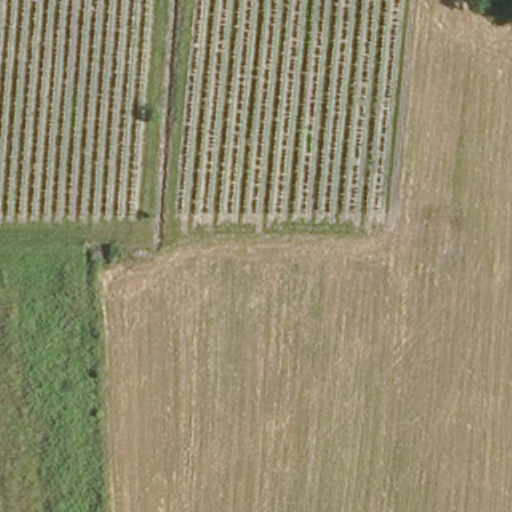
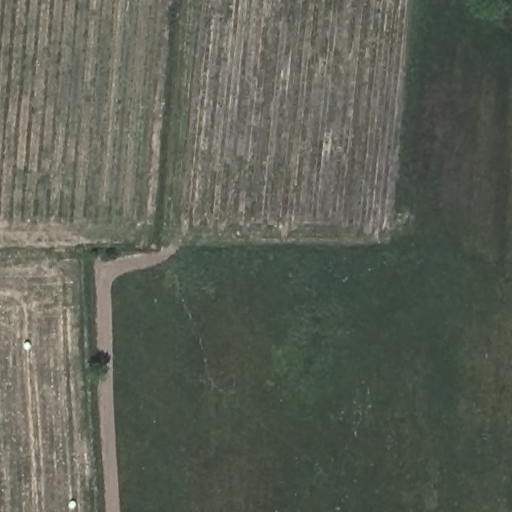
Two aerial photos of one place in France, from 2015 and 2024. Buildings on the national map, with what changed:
[]

